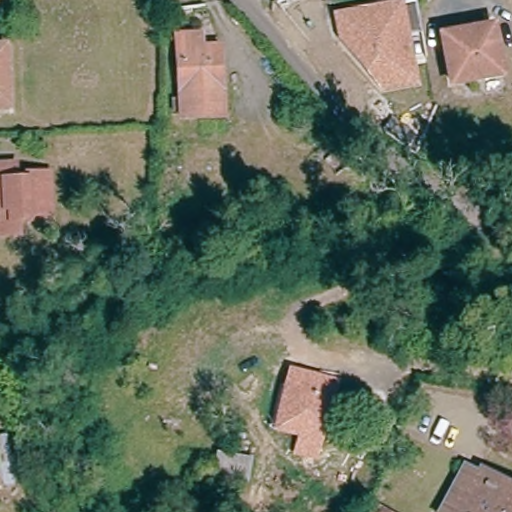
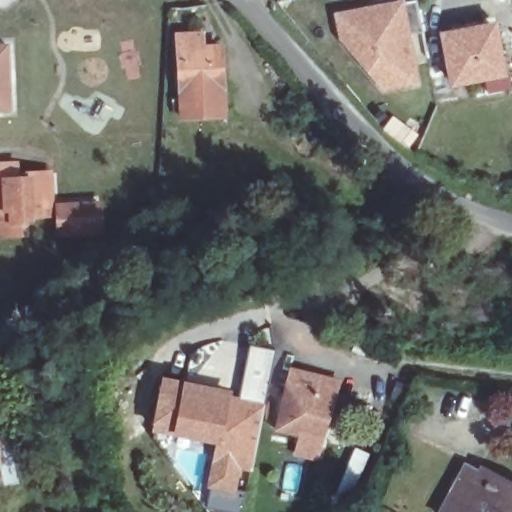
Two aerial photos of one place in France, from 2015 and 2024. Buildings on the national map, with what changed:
unchanged [(335,19),(381,9),(391,6),(414,1),(416,14),(421,34),(406,37),(416,83),(383,91),(362,67),(361,67),(340,44),(335,19)]
unchanged [(438,32),(490,22),(498,72),(447,82),(438,32)]
unchanged [(180,95),(176,37),(201,36),(202,50),(221,49),(225,120),(181,122),(180,95)]
unchanged [(5,109),(0,109),(0,42),(2,42),(5,109)]
unchanged [(415,140),(401,134),(407,121),(420,127),(415,140)]
unchanged [(16,178),(32,177),(31,172),(50,171),(51,212),(30,213),(30,220),(19,220),(19,234),(0,234),(0,162),(16,161),(16,178)]
new [(100,204),(100,232),(59,233),(57,205),(100,204)]
new [(215,392),(214,397),(236,402),(241,382),(249,347),(275,353),(267,388),(262,408),(249,471),(235,468),(229,492),(206,487),(215,443),(152,430),(162,381),(215,392)]
unchanged [(284,382),(327,393),(317,437),(273,426),(284,382)]
unchanged [(0,463),(0,449),(2,462),(0,463)]
unchanged [(437,511),(461,465),(475,472),(477,467),(512,487),(512,512),(439,512),(437,511)]
unchanged [(389,512),(374,512),(377,506),(389,512)]

